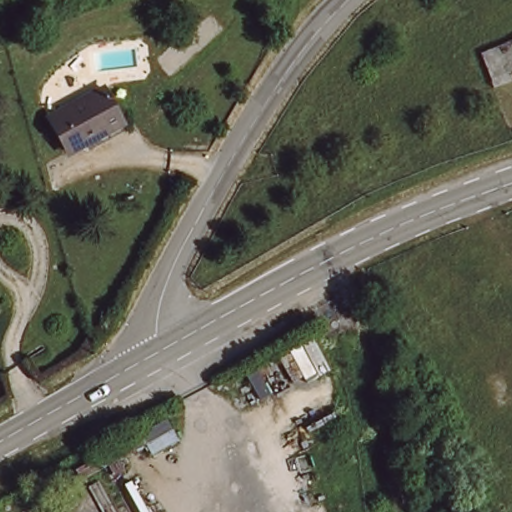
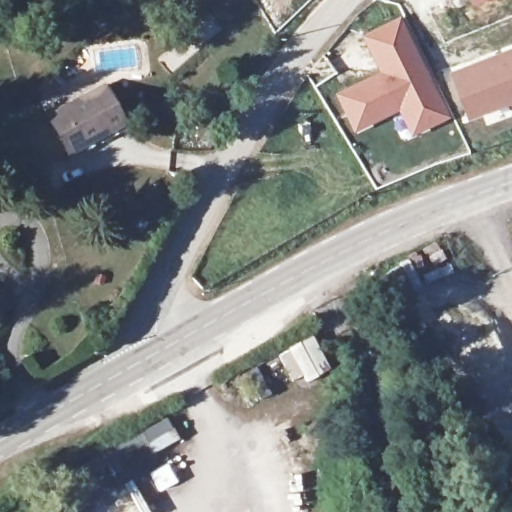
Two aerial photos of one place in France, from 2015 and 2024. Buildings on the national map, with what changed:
new [(472,0),(482,0),(473,3),(472,0)]
new [(334,95),(379,73),(361,36),(399,17),(448,117),(409,136),(396,110),(352,132),(334,95)]
unchanged [(491,81),(479,51),(512,38),(512,83),(496,91),(491,81)]
unchanged [(119,119),(67,151),(43,115),(98,81),(119,119)]

